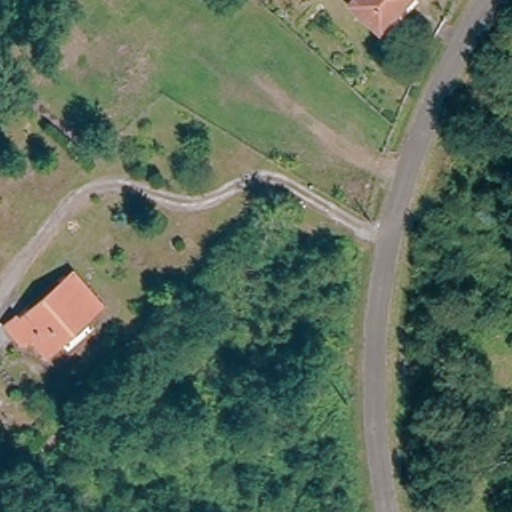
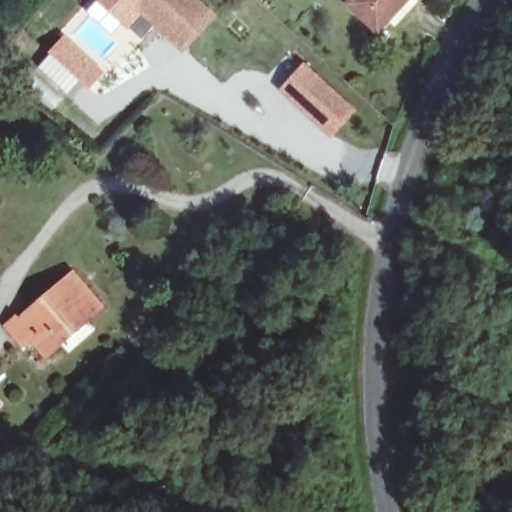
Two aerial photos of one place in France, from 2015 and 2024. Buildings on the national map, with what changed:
new [(126,27),(95,0),(192,0),(211,17),(182,51),(167,37),(154,26),(141,41),(126,27)]
unchanged [(398,0),(372,27),(343,0),(398,0)]
new [(74,87),(44,60),(66,35),(105,72),(89,90),(79,81),(74,87)]
new [(331,136),(294,102),(283,91),(305,67),(316,78),(353,112),(331,136)]
unchanged [(15,315),(21,322),(36,312),(30,303),(69,270),(100,308),(85,321),(79,316),(52,340),(56,346),(44,356),(31,339),(21,346),(4,325),(15,315)]

